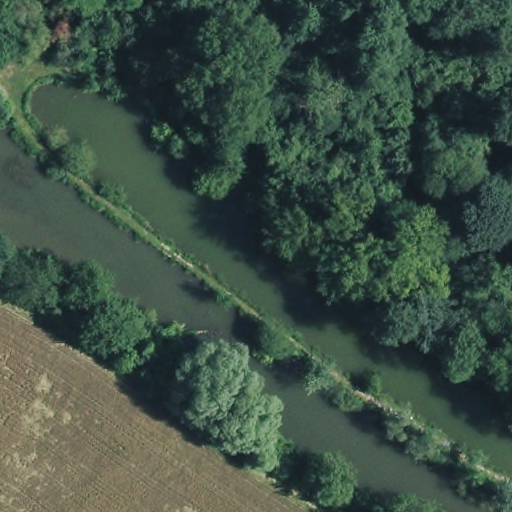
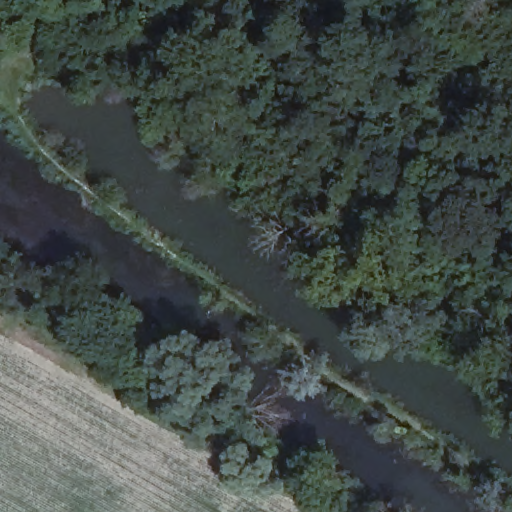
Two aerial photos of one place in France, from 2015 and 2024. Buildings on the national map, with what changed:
[]

